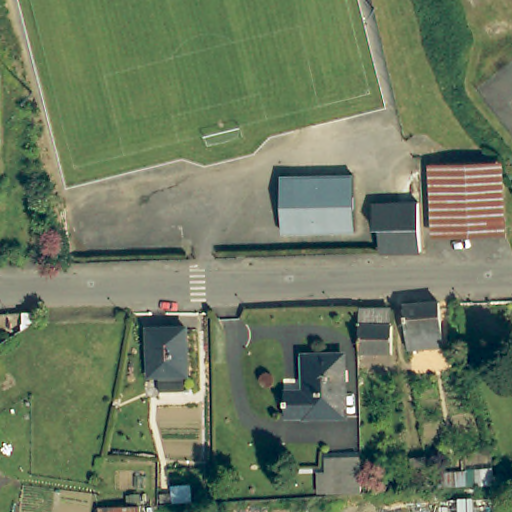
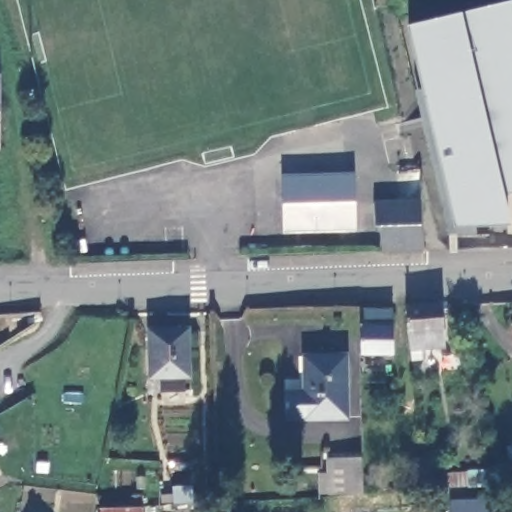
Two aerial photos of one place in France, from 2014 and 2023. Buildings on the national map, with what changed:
new [(512,191),(502,194),(509,226),(456,229),(409,27),(512,1),(512,191)]
unchanged [(11,106),(10,123),(10,124),(2,124),(0,123),(0,106),(11,106)]
demolished [(497,232),(441,234),(441,215),(490,208),(479,160),(506,159),(509,214),(510,232),(497,232)]
demolished [(441,215),(441,234),(437,235),(434,163),(479,160),(490,208),(441,215)]
unchanged [(352,176),(353,230),(281,232),(281,178),(352,176)]
unchanged [(384,249),(384,224),(380,225),(380,201),(402,200),(425,200),(426,224),(426,249),(384,249)]
demolished [(158,250),(88,253),(88,224),(160,223),(158,250)]
unchanged [(447,348),(414,351),(408,305),(443,304),(447,348)]
unchanged [(393,326),(395,326),(395,354),(364,354),(364,312),(393,311),(393,326)]
unchanged [(188,393),(162,394),(162,384),(153,384),(152,337),(191,336),(192,384),(188,384),(188,393)]
unchanged [(307,394),(306,359),(344,358),(347,358),(348,419),(347,419),(307,419),(307,418),(286,418),(285,394),(307,394)]
unchanged [(415,460),(432,457),(437,488),(435,488),(420,489),(415,460)]
unchanged [(349,461),(361,460),(362,493),(350,493),(331,494),(330,461),(349,461)]
unchanged [(94,509),(138,509),(139,512),(95,512),(94,509)]

